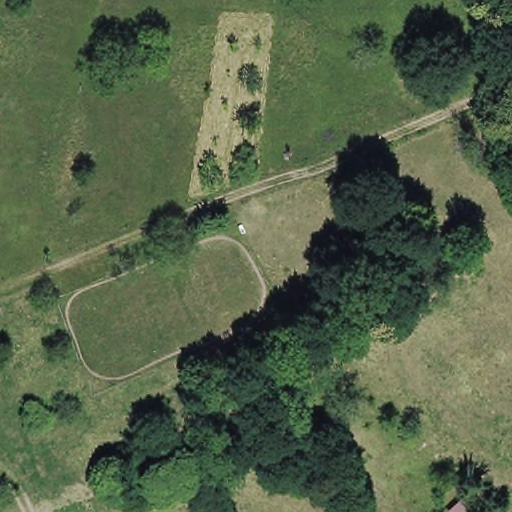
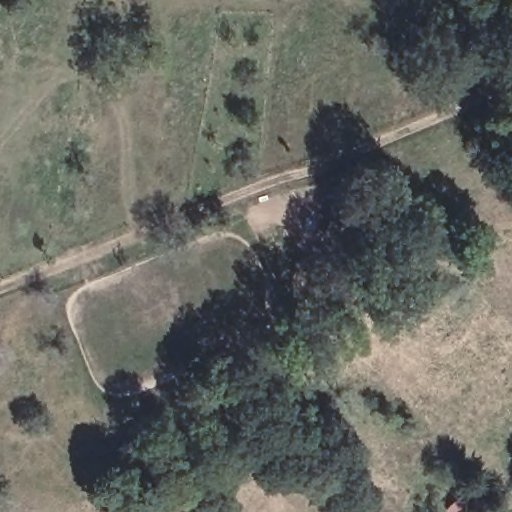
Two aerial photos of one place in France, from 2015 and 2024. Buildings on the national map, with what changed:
[]

